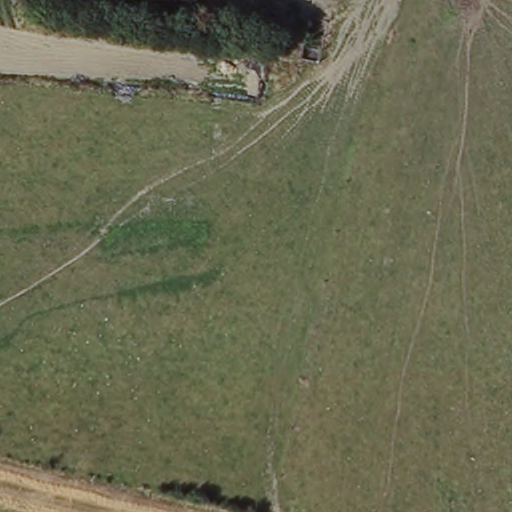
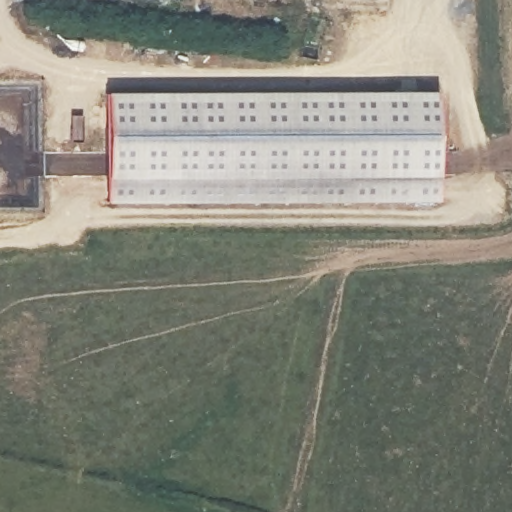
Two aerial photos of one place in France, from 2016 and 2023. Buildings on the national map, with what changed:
new [(105,92),(437,92),(437,201),(106,204),(105,92)]

